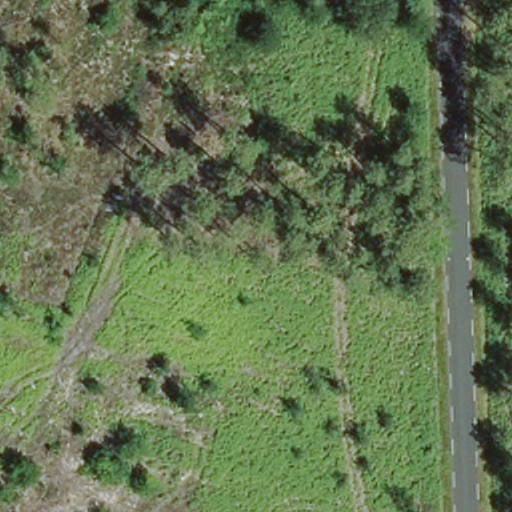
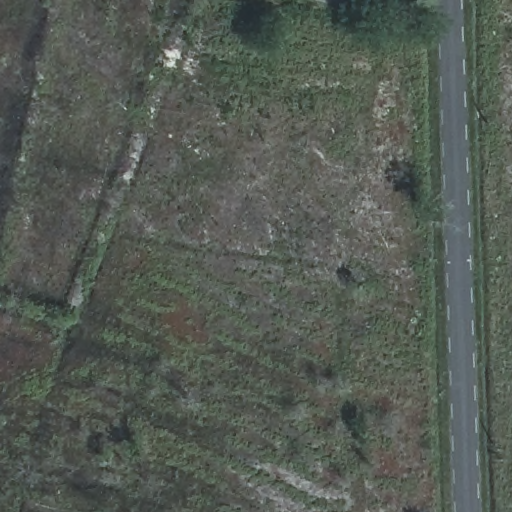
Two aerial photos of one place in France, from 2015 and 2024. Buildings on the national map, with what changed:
[]

